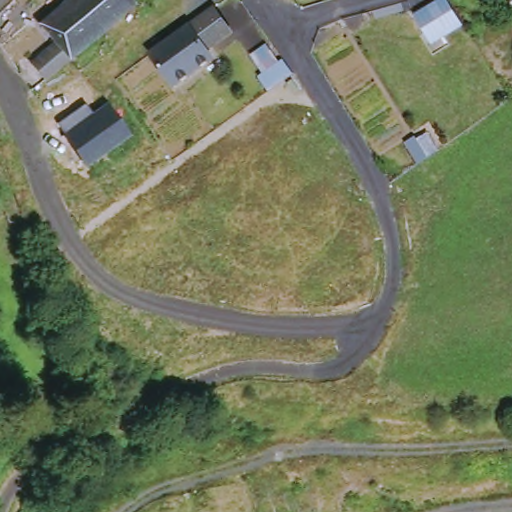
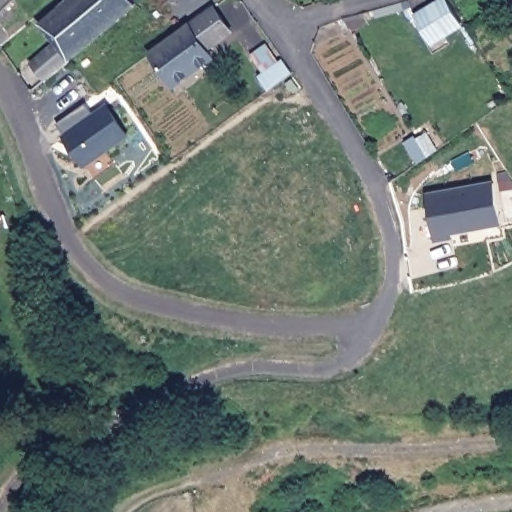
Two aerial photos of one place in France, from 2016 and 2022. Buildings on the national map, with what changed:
unchanged [(65,52),(50,35),(91,0),(132,0),(133,1),(134,0),(139,0),(145,7),(140,11),(144,16),(79,70),(67,56),(66,57),(77,71),(64,83),(55,91),(40,74),(65,52)]
unchanged [(446,2),(462,28),(436,45),(433,47),(417,21),(428,14),(446,2)]
unchanged [(236,40),(211,56),(217,65),(177,92),(155,61),(220,16),(236,40)]
unchanged [(265,83),(291,66),(301,81),(276,98),(265,83)]
unchanged [(130,136),(86,167),(63,135),(64,135),(58,124),(85,104),(93,114),(107,103),(130,136)]
new [(495,182),(501,227),(434,244),(425,200),(495,182)]

